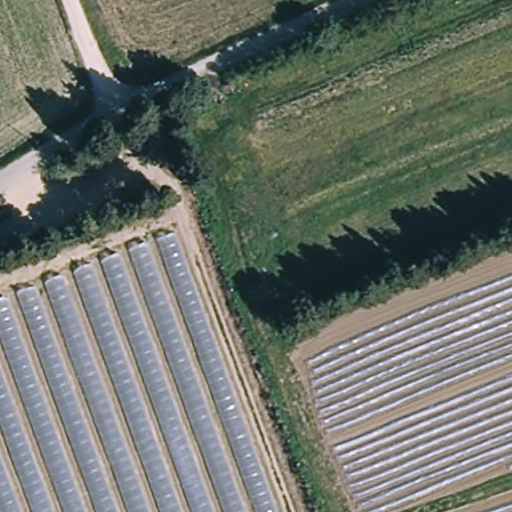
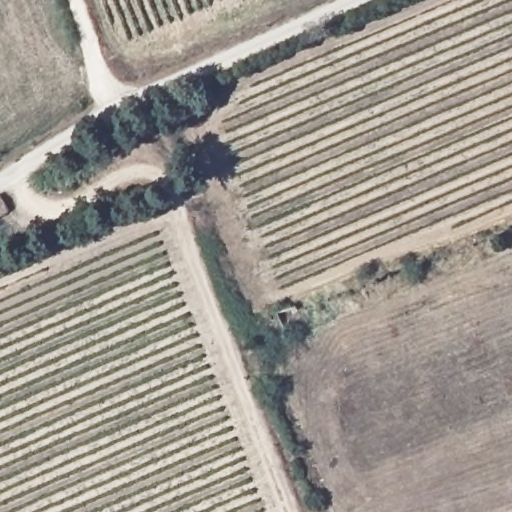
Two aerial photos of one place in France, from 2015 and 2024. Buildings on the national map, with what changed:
unchanged [(15,208),(0,218),(0,194),(5,192),(15,208)]
demolished [(275,512),(0,512),(0,295),(172,227),(275,512)]
unchanged [(305,329),(289,334),(285,322),(300,316),(305,329)]

